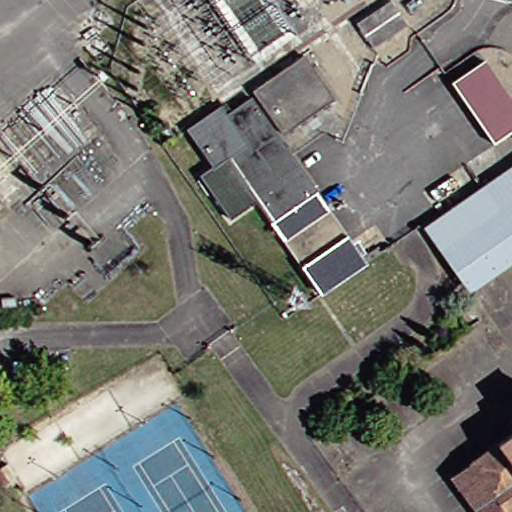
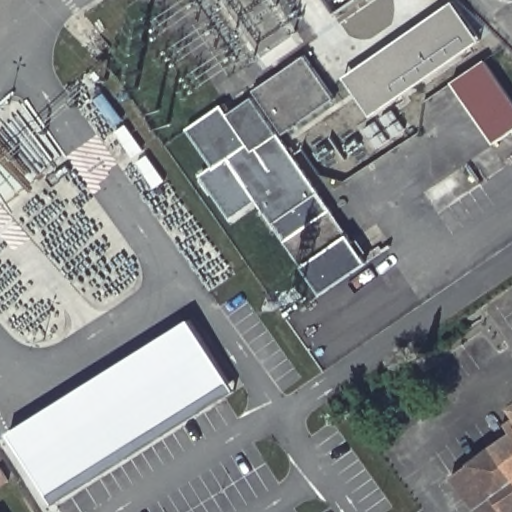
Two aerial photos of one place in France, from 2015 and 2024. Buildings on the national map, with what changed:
unchanged [(285,33),(285,34),(262,50),(261,49),(257,51),(221,0),(266,0),(288,30),(285,33)]
demolished [(382,45),(381,45),(364,21),(394,0),(399,0),(414,21),(382,45)]
new [(478,44),(371,120),(342,80),(451,4),(478,44)]
unchanged [(305,52),(334,96),(305,116),(284,132),(282,129),(255,89),(305,52)]
new [(452,83),(485,60),(512,100),(512,130),(493,144),(452,83)]
unchanged [(254,96),(278,132),(292,153),(303,170),(364,263),(320,294),(261,205),(257,200),(232,219),(202,175),(214,166),(189,130),(222,106),(228,114),(239,106),(254,96)]
new [(6,437),(187,325),(192,333),(11,444),(6,437)]
new [(192,333),(226,388),(45,500),(11,444),(192,333)]
new [(226,388),(231,396),(50,508),(45,500),(226,388)]
unchanged [(512,512),(487,512),(459,474),(512,436),(512,512)]

